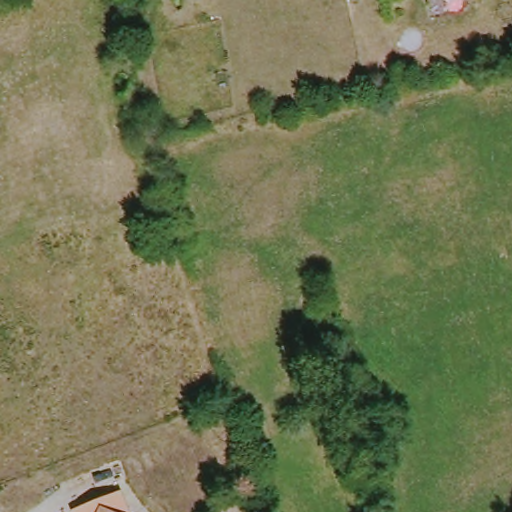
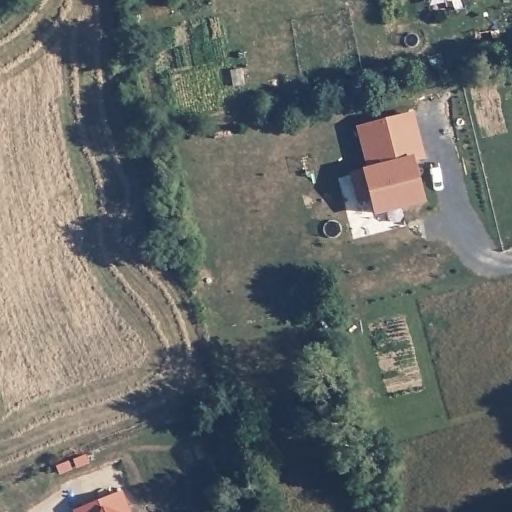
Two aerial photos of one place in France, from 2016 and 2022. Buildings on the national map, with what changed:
new [(412,162),(421,201),(376,210),(373,197),(359,200),(353,174),(368,170),(357,126),(413,113),(424,159),(412,162)]
unchanged [(116,494),(124,512),(72,512),(72,510),(116,494)]

